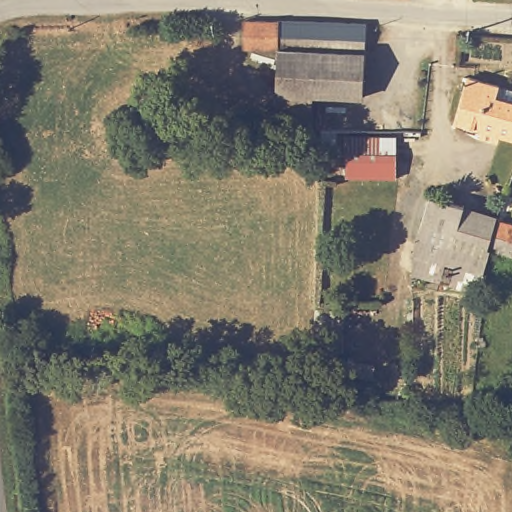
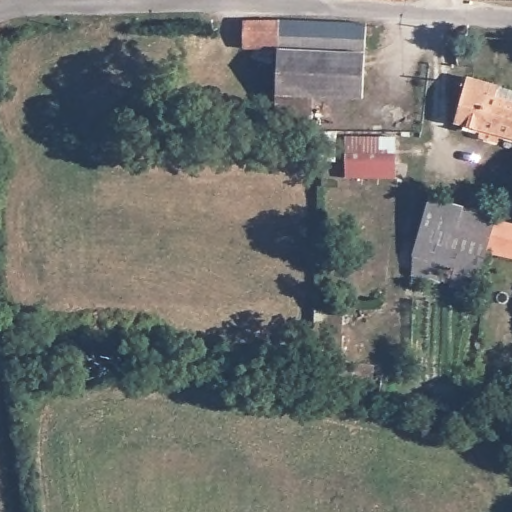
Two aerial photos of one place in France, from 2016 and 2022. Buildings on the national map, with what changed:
unchanged [(279,47),(246,46),(246,28),(246,19),(301,19),(364,21),(363,95),(314,94),(278,92),(279,47)]
unchanged [(465,76),(496,85),(512,90),(512,135),(453,117),(465,76)]
unchanged [(313,124),(277,123),(278,92),(314,94),(313,124)]
unchanged [(398,169),(348,170),(348,135),(398,135),(398,169)]
unchanged [(466,202),(464,208),(500,217),(492,248),(489,270),(480,269),(475,287),(452,281),(456,262),(414,253),(432,194),(466,202)]
unchanged [(492,248),(500,217),(512,220),(512,253),(492,248)]

